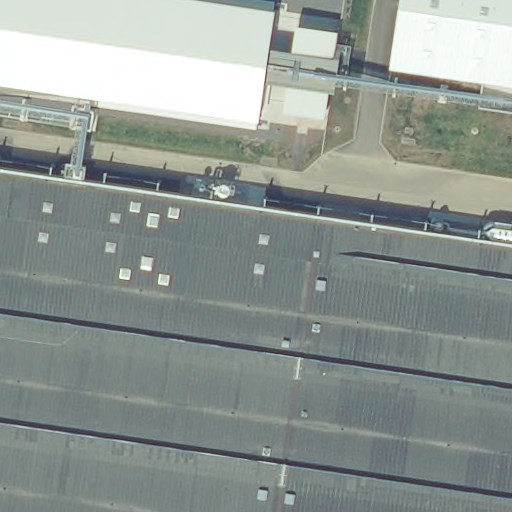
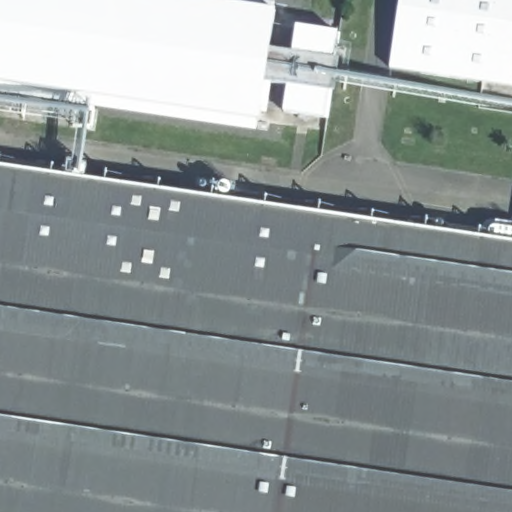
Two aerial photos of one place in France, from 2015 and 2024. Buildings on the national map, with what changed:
unchanged [(340,59),(335,92),(330,91),(326,118),(285,111),(288,86),(265,81),(260,119),(0,81),(0,0),(207,0),(276,10),(270,48),(293,51),(297,25),(338,32),(335,58),(340,59)]
unchanged [(391,68),(401,0),(512,0),(512,86),(391,68)]
unchanged [(0,512),(0,159),(512,237),(512,512),(0,512)]

